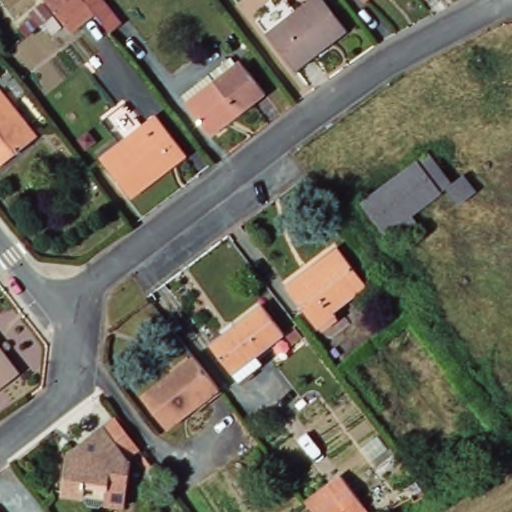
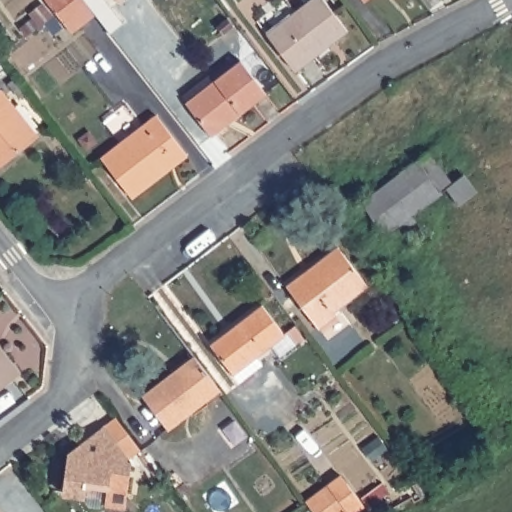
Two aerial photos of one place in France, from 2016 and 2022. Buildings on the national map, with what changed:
unchanged [(59,10),(51,0),(106,0),(123,21),(111,31),(94,11),(74,29),(59,10)]
unchanged [(348,30),(333,42),(330,40),(314,52),(317,56),(297,71),(268,35),(311,0),(325,0),(348,30)]
unchanged [(364,0),(368,0),(365,2),(364,0)]
unchanged [(269,95),(215,139),(189,105),(192,101),(187,95),(235,57),(240,63),(243,61),(269,95)]
unchanged [(41,135),(0,168),(0,90),(3,87),(41,135)]
unchanged [(133,196),(105,161),(160,118),(191,157),(179,167),(137,201),(133,196)]
unchanged [(456,179),(470,167),(486,186),(465,203),(452,188),(417,214),(426,225),(411,237),(402,226),(390,235),(363,201),(433,149),(456,179)]
unchanged [(371,285),(335,311),(338,316),(322,328),(288,285),(339,245),(371,285)]
unchanged [(246,385),(239,376),(236,377),(213,346),(263,307),(288,337),(265,355),(272,363),(246,385)]
unchanged [(0,386),(0,348),(18,371),(0,386)]
unchanged [(224,387),(172,428),(145,394),(198,353),(224,387)]
unchanged [(117,415),(141,447),(135,483),(133,490),(113,489),(112,495),(108,499),(94,497),(90,493),(91,485),(72,482),(77,445),(117,415)]
unchanged [(346,478),(368,505),(372,510),(370,512),(311,512),(307,508),(346,478)]

